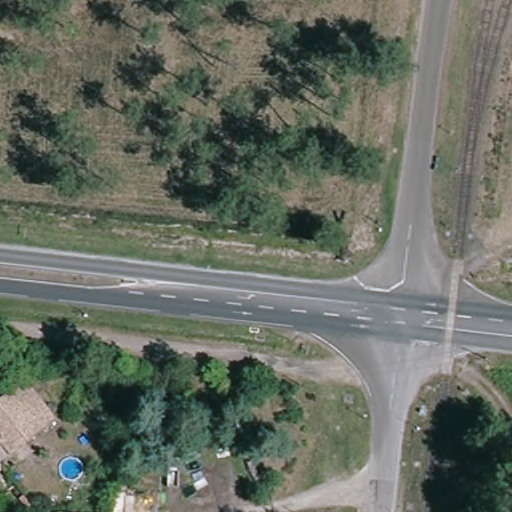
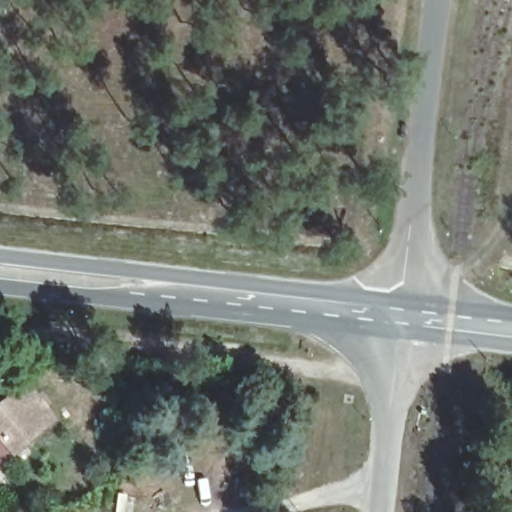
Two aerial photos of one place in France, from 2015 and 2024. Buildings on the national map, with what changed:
unchanged [(53,417),(0,462),(0,401),(23,382),(53,417)]

